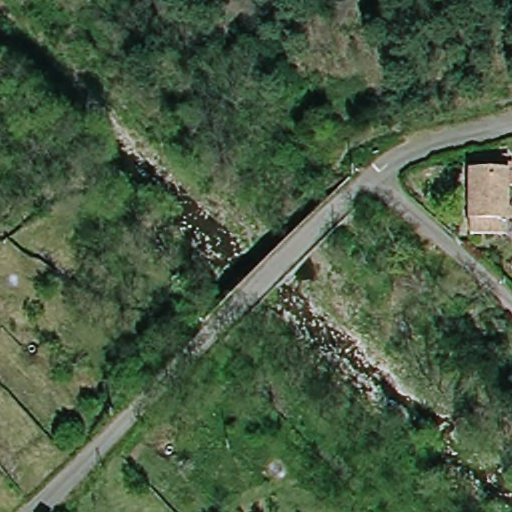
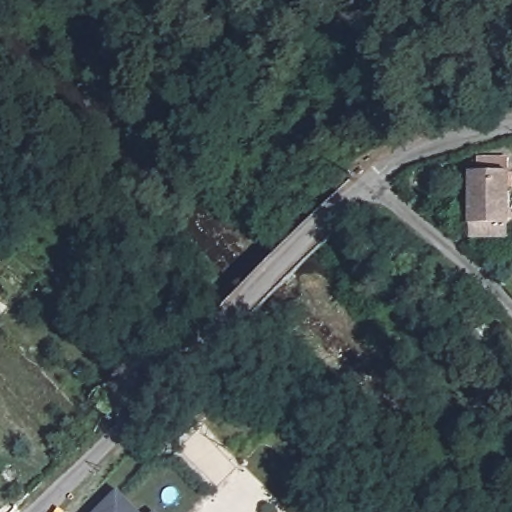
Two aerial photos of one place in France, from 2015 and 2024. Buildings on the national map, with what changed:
unchanged [(473,237),(473,223),(473,172),(478,172),(478,159),(511,160),(511,177),(512,177),(512,186),(511,187),(511,224),(511,236),(511,237),(510,237),(473,237)]
new [(141,512),(98,512),(119,491),(141,512)]

